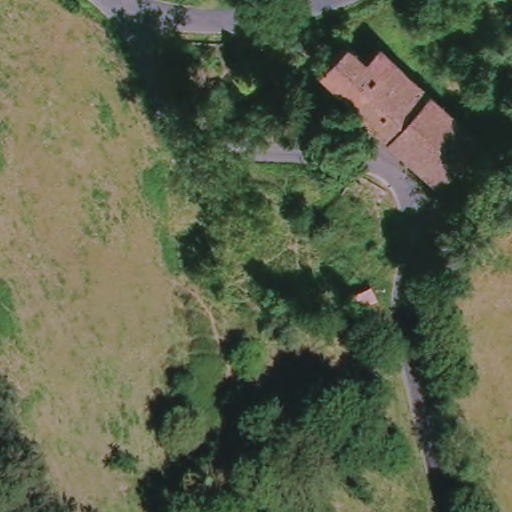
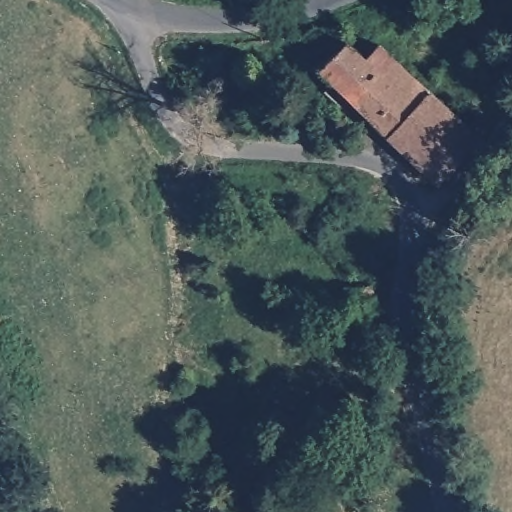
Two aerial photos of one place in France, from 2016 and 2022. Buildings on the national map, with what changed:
unchanged [(423,179),(327,85),(313,72),(340,42),(358,59),(371,45),(464,135),(472,142),(430,186),(423,179)]
unchanged [(452,248),(435,279),(420,272),(431,243),(452,248)]
unchanged [(378,297),(357,305),(352,292),(375,281),(378,297)]

